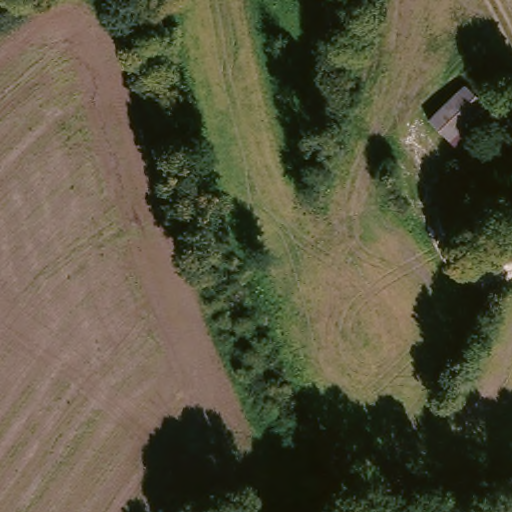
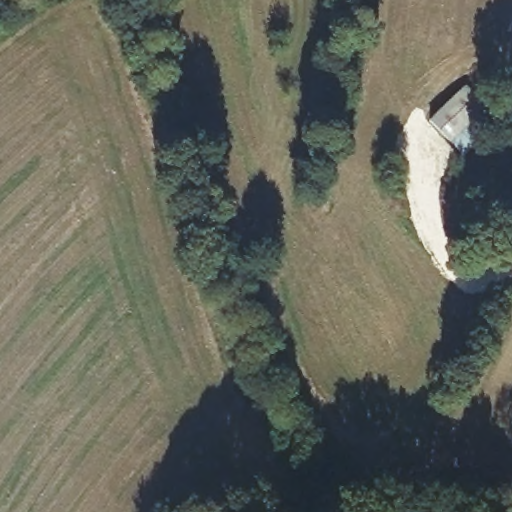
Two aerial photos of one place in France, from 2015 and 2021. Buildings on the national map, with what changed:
unchanged [(462,85),(496,119),(465,154),(427,124),(462,85)]

